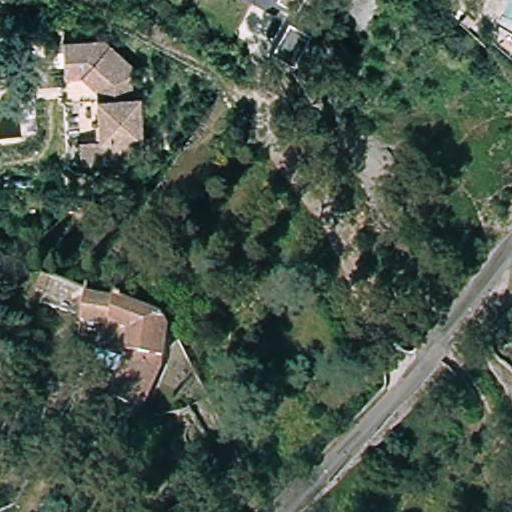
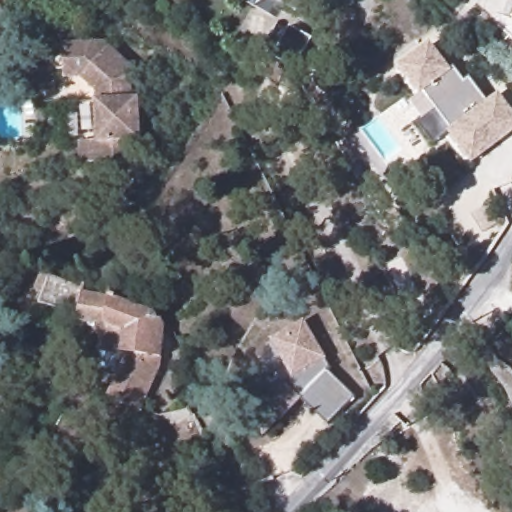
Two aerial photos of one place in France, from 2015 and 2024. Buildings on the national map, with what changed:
unchanged [(0,4),(0,0),(4,0),(4,5),(0,4)]
unchanged [(277,3),(278,0),(307,0),(299,14),(277,3)]
unchanged [(291,21),(315,34),(297,68),(273,55),(291,21)]
new [(492,61),(481,53),(496,31),(512,41),(512,80),(492,61)]
new [(453,65),(465,81),(470,77),(487,100),(498,92),(512,111),(512,133),(472,164),(448,133),(434,143),(419,124),(435,111),(423,94),(421,95),(399,65),(431,41),(451,68),(453,65)]
unchanged [(105,43),(136,70),(129,78),(128,82),(131,83),(132,99),(139,99),(142,141),(149,140),(151,162),(79,166),(79,144),(96,144),(95,94),(80,80),(63,81),(61,45),(105,43)]
unchanged [(45,289),(35,285),(36,284),(46,268),(85,282),(85,278),(147,294),(162,309),(169,321),(163,364),(146,405),(110,391),(128,348),(100,344),(103,319),(79,318),(81,308),(41,299),(45,289)]
new [(305,320),(331,367),(326,371),(354,397),(329,424),(302,400),(263,444),(238,421),(279,374),(286,383),(291,378),(271,339),(305,320)]
unchanged [(11,363),(5,389),(0,389),(0,357),(11,363)]

